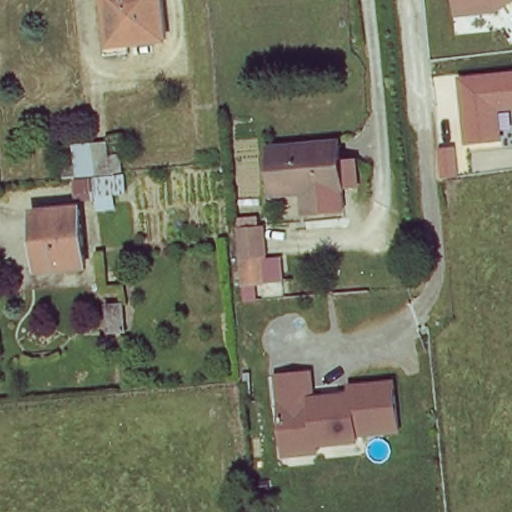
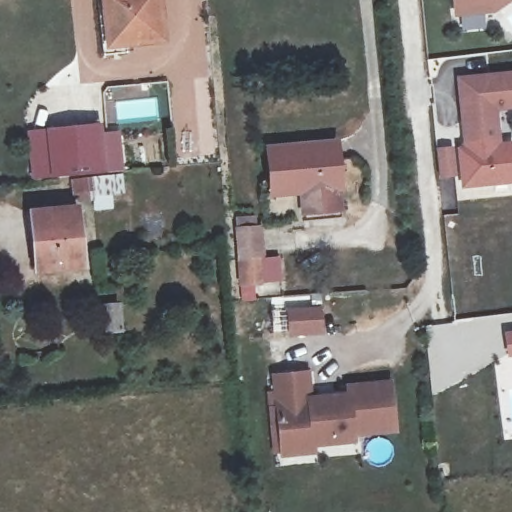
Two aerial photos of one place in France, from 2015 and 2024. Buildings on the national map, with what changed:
unchanged [(167,32),(132,36),(132,46),(104,49),(101,10),(109,10),(108,0),(164,0),(167,32)]
unchanged [(512,2),(497,12),(455,14),(454,0),(512,0),(512,2)]
unchanged [(512,110),(499,111),(502,140),(463,145),(456,77),(512,71),(512,110)]
new [(122,170),(102,172),(52,176),(32,178),(26,131),(46,129),(101,124),(102,133),(119,131),(122,170)]
demolished [(94,192),(81,194),(79,175),(73,175),(70,141),(123,136),(129,200),(95,204),(94,192)]
new [(457,146),(463,145),(502,142),(512,142),(512,182),(461,187),(457,146)]
unchanged [(348,190),(335,190),(266,199),(263,155),(333,149),(334,170),(345,170),(348,190)]
unchanged [(81,204),(85,263),(37,266),(33,207),(81,204)]
unchanged [(260,255),(277,255),(278,280),(252,282),(251,298),(236,300),(231,228),(258,224),(260,255)]
unchanged [(125,295),(127,329),(105,330),(103,296),(125,295)]
new [(325,314),(326,338),(310,339),(294,340),(292,315),(309,315),(325,314)]
new [(512,355),(507,355),(505,330),(512,329),(512,355)]
unchanged [(280,448),(277,417),(273,369),(306,366),(308,392),(347,388),(346,380),(389,377),(393,425),(351,428),(352,435),(311,438),(312,445),(280,448)]

